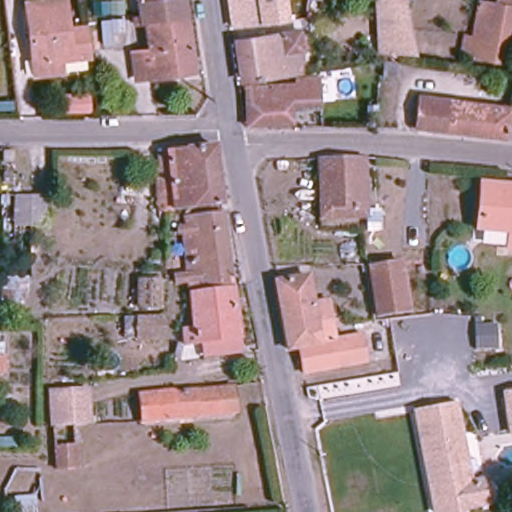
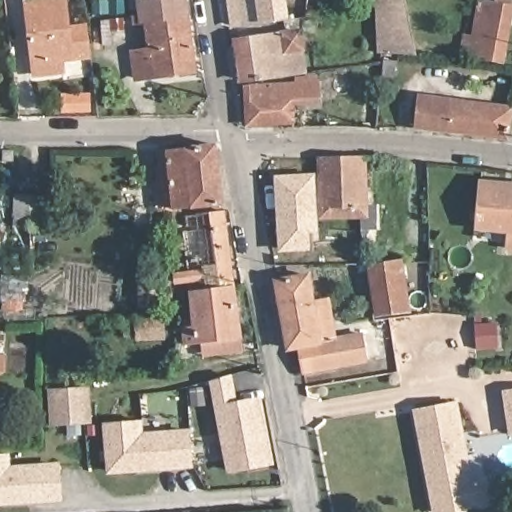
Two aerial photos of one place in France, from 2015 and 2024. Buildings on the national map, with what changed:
unchanged [(85,25),(87,51),(61,55),(62,66),(35,70),(27,0),(66,0),(69,26),(85,25)]
unchanged [(141,14),(139,0),(186,0),(188,15),(146,20),(132,22),(132,15),(141,14)]
unchanged [(281,0),(281,6),(284,6),(285,20),(242,25),(230,26),(228,0),(281,0)]
unchanged [(380,51),(379,0),(406,0),(419,55),(380,51)]
unchanged [(481,0),(484,0),(496,3),(497,0),(512,0),(512,4),(511,7),(512,7),(512,19),(502,61),(466,55),(469,34),(474,35),(481,0)]
unchanged [(137,77),(135,52),(150,49),(146,20),(188,15),(189,14),(196,70),(173,73),(154,75),(137,77)]
unchanged [(129,43),(105,45),(103,20),(127,19),(129,43)]
unchanged [(302,28),(307,69),(249,76),(240,77),(235,36),(244,35),(302,28)]
unchanged [(394,57),(393,70),(384,70),(385,56),(394,57)]
unchanged [(296,80),(296,75),(312,74),(313,94),(297,95),(299,115),(257,118),(253,84),(296,80)]
unchanged [(67,114),(67,97),(95,96),(95,113),(67,114)]
unchanged [(418,130),(422,100),(512,110),(510,137),(418,130)]
unchanged [(22,146),(21,155),(13,154),(13,145),(22,146)]
unchanged [(157,152),(214,146),(220,205),(158,210),(157,198),(161,197),(159,170),(157,152)]
unchanged [(333,219),(322,219),(320,160),(365,160),(366,208),(366,219),(333,219)]
new [(319,231),(309,232),(310,250),(280,251),(275,174),(315,172),(319,231)]
unchanged [(512,237),(509,237),(510,225),(479,222),(484,180),(512,183),(512,237)]
unchanged [(51,195),(50,230),(15,228),(16,194),(51,195)]
unchanged [(176,280),(188,279),(181,236),(187,235),(184,219),(223,212),(235,290),(232,290),(191,296),(190,286),(176,288),(176,280)]
unchanged [(404,266),(409,310),(379,312),(374,268),(404,266)]
unchanged [(21,316),(0,317),(0,288),(0,274),(22,275),(21,316)]
unchanged [(158,276),(160,305),(139,305),(137,278),(158,276)]
unchanged [(366,345),(375,343),(376,353),(368,355),(369,362),(339,367),(303,372),(299,348),(289,350),(276,284),(308,279),(312,300),(327,297),(335,342),(364,338),(366,345)]
unchanged [(206,361),(203,345),(187,347),(185,334),(196,331),(191,296),(232,290),(235,290),(242,339),(245,355),(206,361)]
unchanged [(165,335),(118,338),(117,319),(164,316),(165,335)]
new [(274,465),(227,473),(210,380),(233,375),(238,400),(261,396),(274,465)]
unchanged [(52,391),(86,388),(90,419),(83,420),(66,421),(53,423),(52,391)]
demolished [(145,426),(144,419),(136,420),(135,415),(134,405),(139,403),(140,396),(153,395),(153,394),(185,392),(217,390),(217,391),(243,389),(244,412),(154,418),(154,425),(145,426)]
unchanged [(512,391),(512,433),(506,433),(500,393),(512,391)]
unchanged [(469,481),(484,478),(488,501),(467,505),(465,512),(443,512),(441,510),(434,511),(415,411),(454,404),(469,481)]
new [(190,428),(193,467),(107,474),(102,422),(143,420),(143,431),(190,428)]
unchanged [(5,422),(11,422),(29,421),(30,431),(12,432),(5,432),(5,422)]
demolished [(54,471),(52,445),(77,443),(79,468),(54,471)]
new [(60,461),(62,502),(0,506),(0,454),(10,453),(11,465),(60,461)]
demolished [(33,495),(34,512),(11,512),(10,495),(33,495)]

